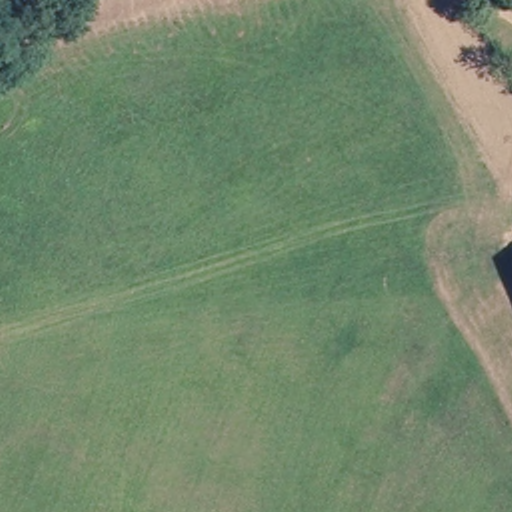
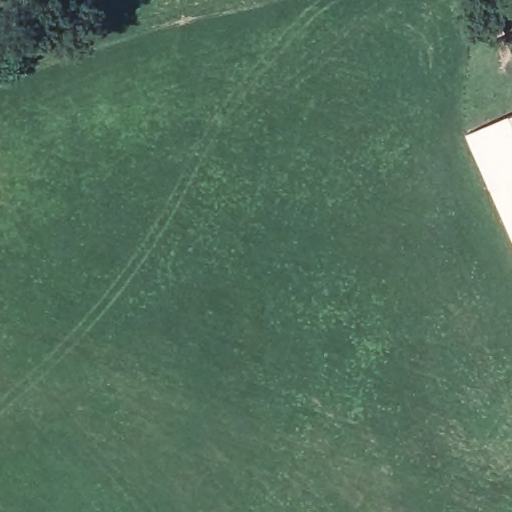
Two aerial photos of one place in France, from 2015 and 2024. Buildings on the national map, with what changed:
new [(487,191),(464,135),(512,115),(512,179),(487,191)]
new [(487,191),(512,179),(512,249),(487,191)]

